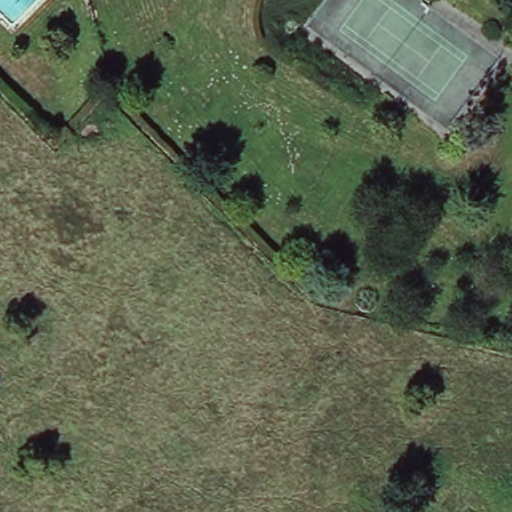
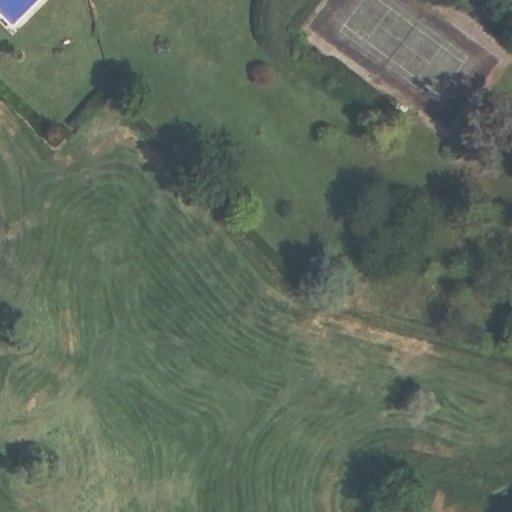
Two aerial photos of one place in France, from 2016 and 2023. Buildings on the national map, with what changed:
[]

